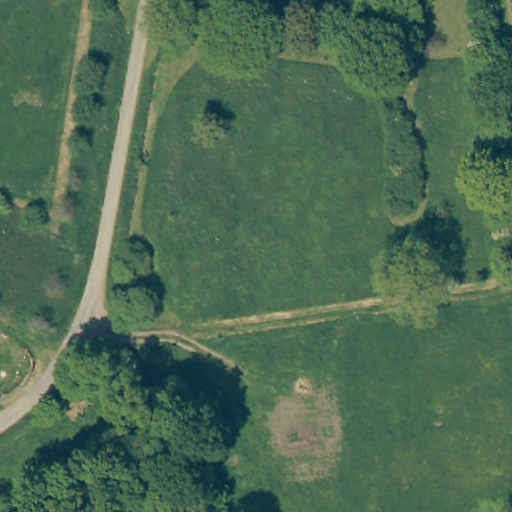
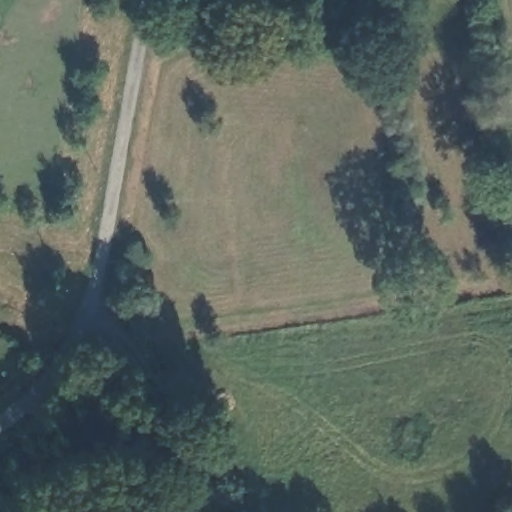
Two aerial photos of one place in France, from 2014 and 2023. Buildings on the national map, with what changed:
unchanged [(3,391),(0,391),(0,379),(3,391)]

